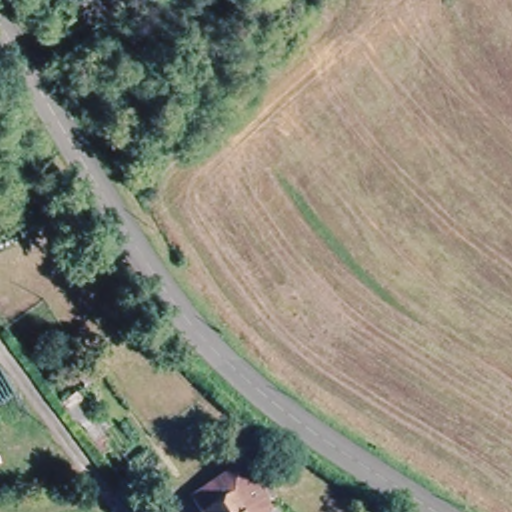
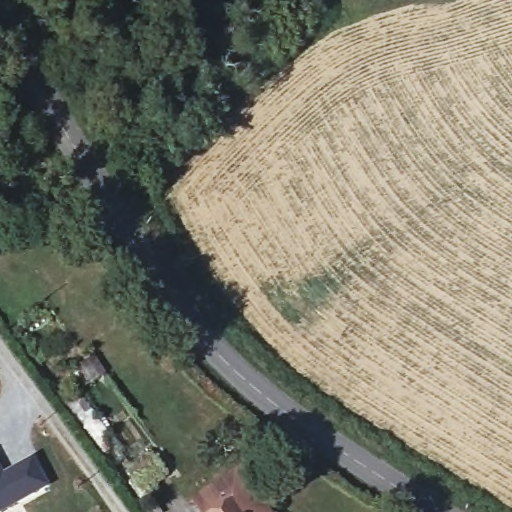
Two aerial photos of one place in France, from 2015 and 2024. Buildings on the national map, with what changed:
new [(2,472),(34,455),(50,486),(1,512),(0,512),(0,469),(2,472)]
unchanged [(242,464),(265,500),(273,511),(272,512),(200,512),(190,496),(242,464)]

